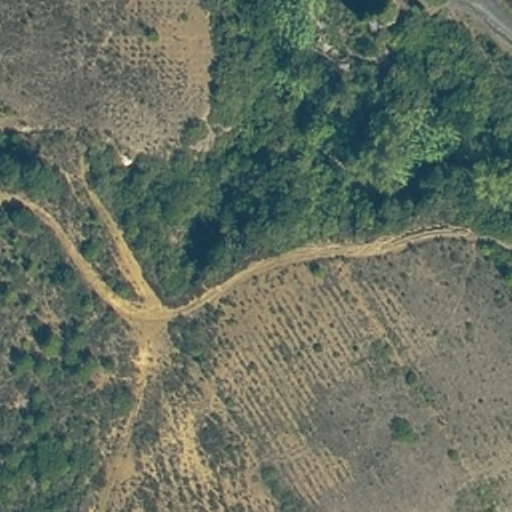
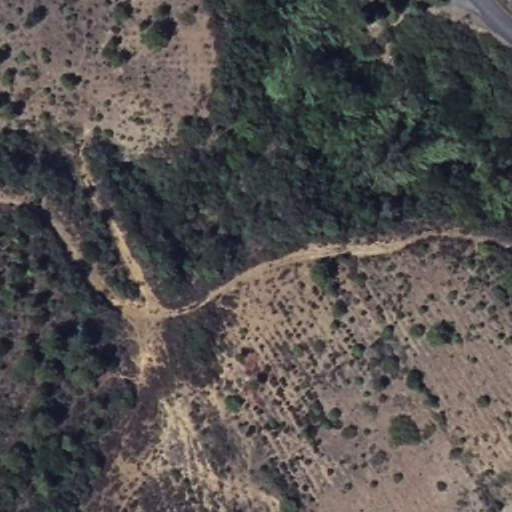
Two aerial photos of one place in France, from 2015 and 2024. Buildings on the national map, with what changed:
unchanged [(362,5),(374,0),(392,0),(398,15),(370,26),(362,5)]

